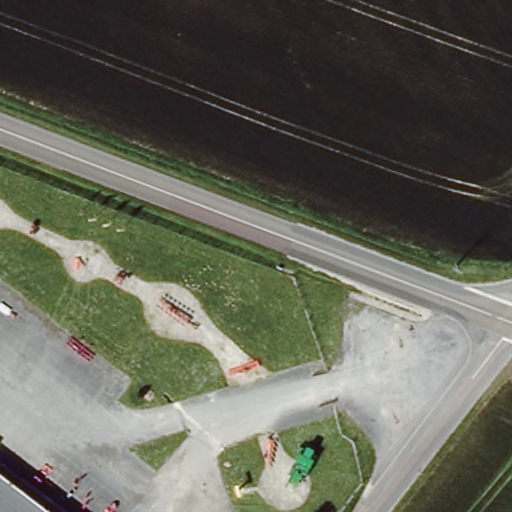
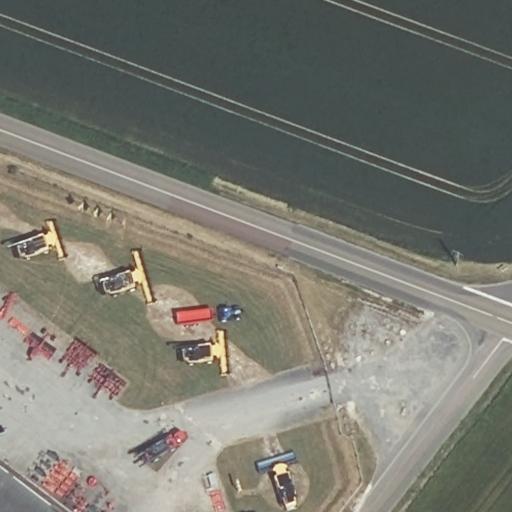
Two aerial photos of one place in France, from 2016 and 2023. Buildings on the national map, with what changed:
unchanged [(0,460),(1,459),(70,512),(0,512),(0,460)]

